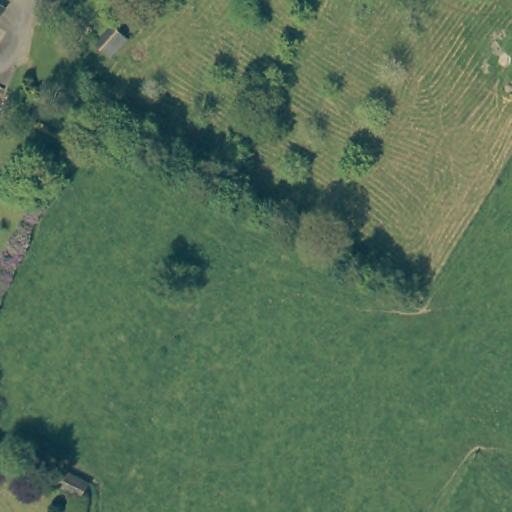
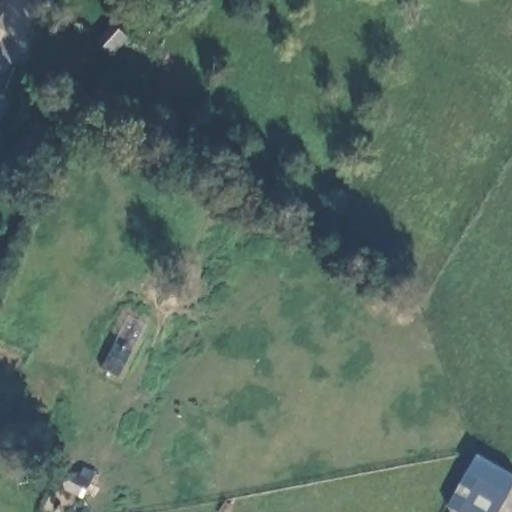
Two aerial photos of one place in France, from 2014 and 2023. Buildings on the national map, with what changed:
unchanged [(0,10),(0,0),(4,0),(5,1),(0,10)]
unchanged [(97,44),(115,27),(125,37),(109,55),(97,44)]
new [(512,484),(512,497),(501,512),(456,512),(447,507),(475,463),(512,484)]

